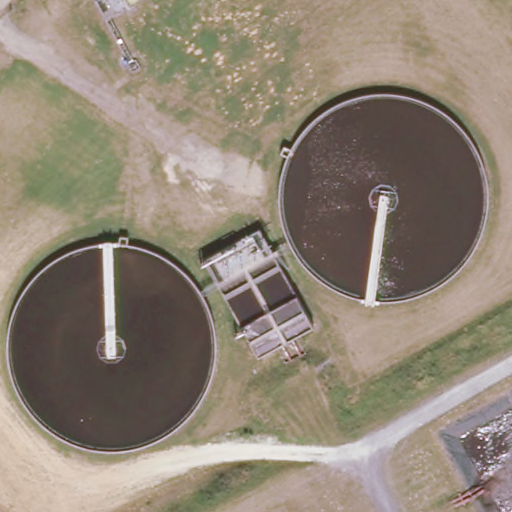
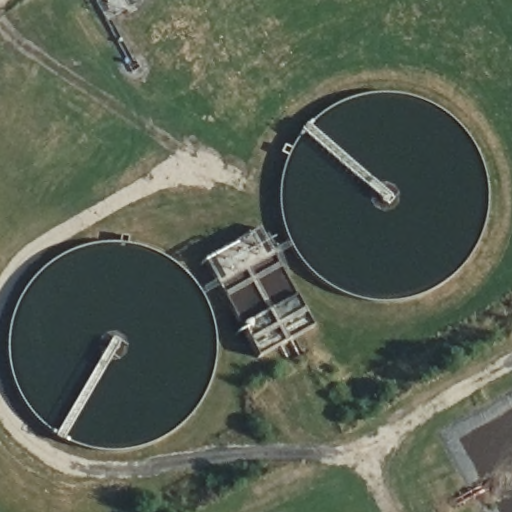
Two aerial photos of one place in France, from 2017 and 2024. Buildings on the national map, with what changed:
unchanged [(256,229),(313,326),(256,357),(202,261),(256,229)]

